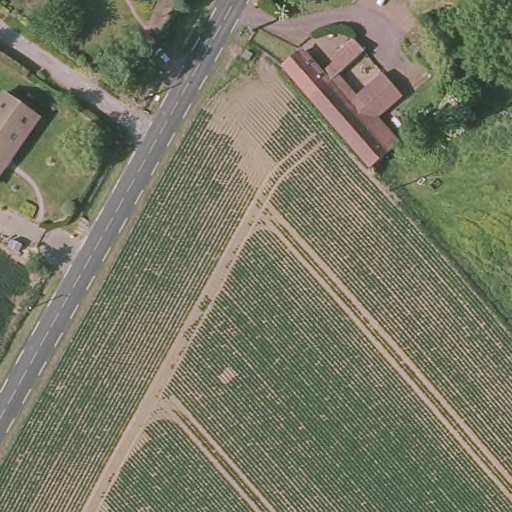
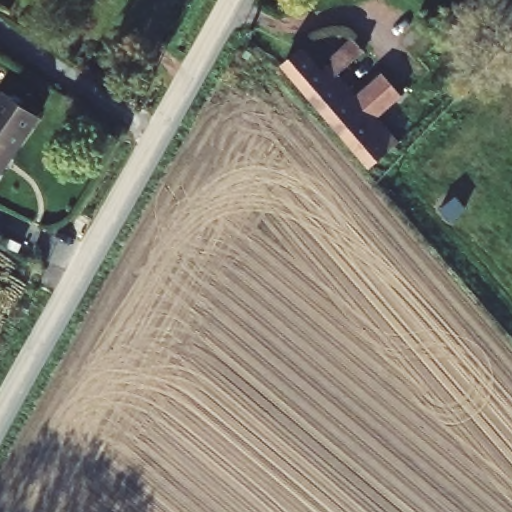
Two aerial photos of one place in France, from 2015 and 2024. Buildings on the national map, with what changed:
unchanged [(282,68),(299,52),(317,73),(348,47),(359,58),(327,86),(311,101),(282,68)]
unchanged [(327,86),(346,107),(377,81),(385,89),(339,131),(311,101),(327,86)]
unchanged [(394,99),(371,120),(397,148),(374,169),(339,131),(385,89),(394,99)]
unchanged [(34,118),(0,167),(0,103),(4,96),(34,118)]

